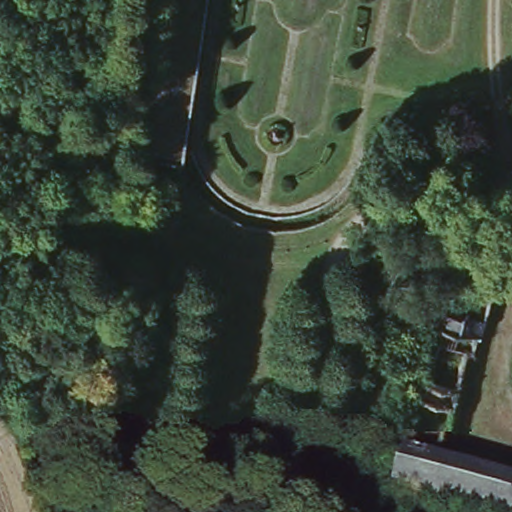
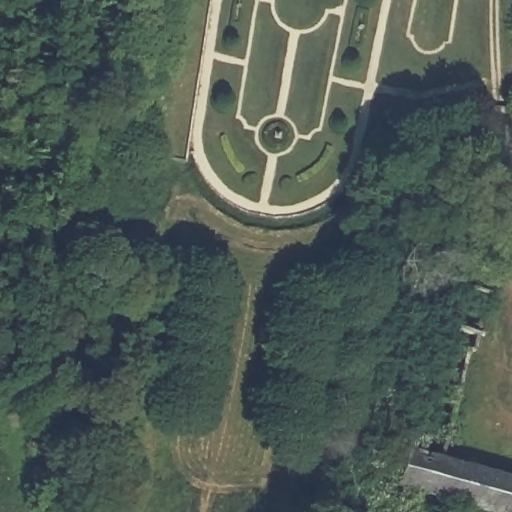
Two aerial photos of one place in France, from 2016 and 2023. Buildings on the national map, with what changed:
unchanged [(455,286),(494,296),(483,337),(479,338),(437,324),(450,285),(455,286)]
unchanged [(479,338),(476,353),(468,352),(442,459),(512,477),(512,512),(477,512),(392,489),(411,418),(436,324),(437,324),(479,338)]

